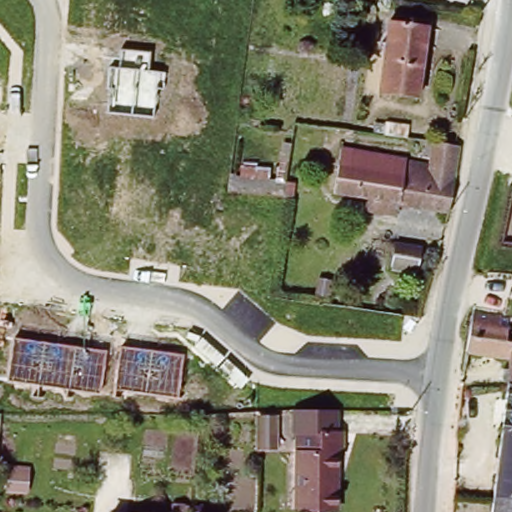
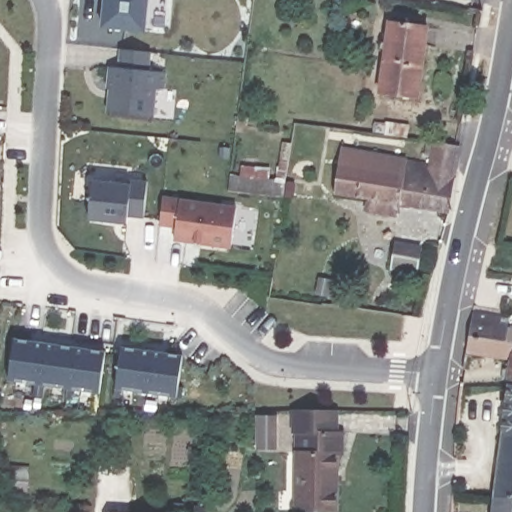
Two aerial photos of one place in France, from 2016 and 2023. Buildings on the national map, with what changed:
new [(104,0),(148,0),(145,30),(102,26),(104,0)]
unchanged [(380,96),(390,27),(426,31),(417,101),(380,96)]
unchanged [(110,67),(118,68),(120,49),(150,52),(149,70),(166,71),(165,90),(156,90),(153,117),(107,112),(110,67)]
unchanged [(385,121),(407,124),(407,138),(383,135),(385,121)]
unchanged [(367,192),(335,187),(341,144),(430,159),(435,136),(455,139),(459,140),(448,205),(398,197),(396,210),(380,207),(365,205),(367,192)]
unchanged [(285,180),(282,196),(282,197),(228,191),(230,174),(285,180)]
new [(143,218),(125,215),(125,224),(88,220),(93,180),(130,183),(131,179),(147,181),(143,218)]
new [(230,249),(200,245),(201,241),(193,240),(192,244),(174,240),(175,228),(160,226),(164,196),(180,199),(236,206),(230,249)]
unchanged [(385,272),(390,248),(417,252),(413,276),(385,272)]
demolished [(320,318),(267,310),(268,295),(320,302),(322,302),(320,318)]
unchanged [(465,308),(512,318),(512,392),(498,389),(502,358),(459,352),(463,313),(465,308)]
unchanged [(13,338),(105,351),(100,393),(8,380),(13,338)]
unchanged [(120,348),(182,356),(177,396),(115,389),(120,348)]
demolished [(456,376),(469,378),(463,444),(448,442),(456,376)]
unchanged [(512,392),(512,502),(488,498),(498,389),(512,392)]
unchanged [(342,453),(335,453),(335,510),(295,508),(297,431),(305,431),(305,410),(337,410),(338,410),(338,431),(342,431),(342,453)]
new [(256,415),(277,415),(276,448),(255,447),(256,415)]
unchanged [(512,512),(487,512),(488,498),(512,502),(512,512)]

